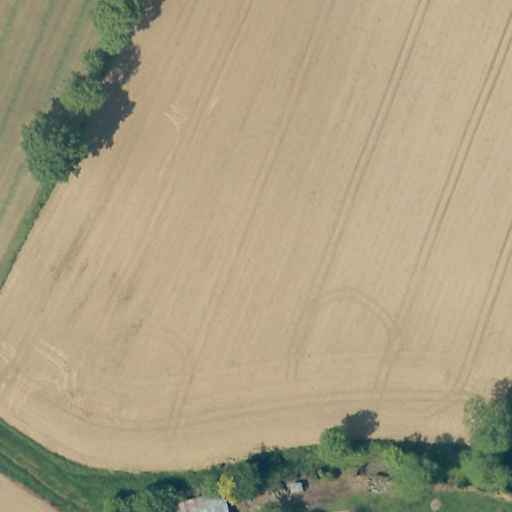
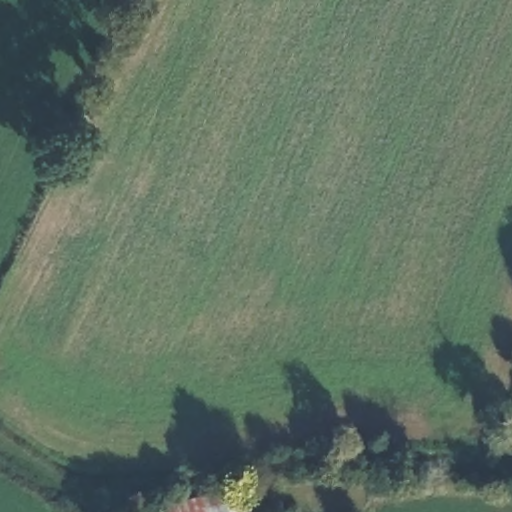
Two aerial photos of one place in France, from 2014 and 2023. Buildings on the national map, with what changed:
unchanged [(162,508),(216,493),(221,512),(163,512),(162,508)]

